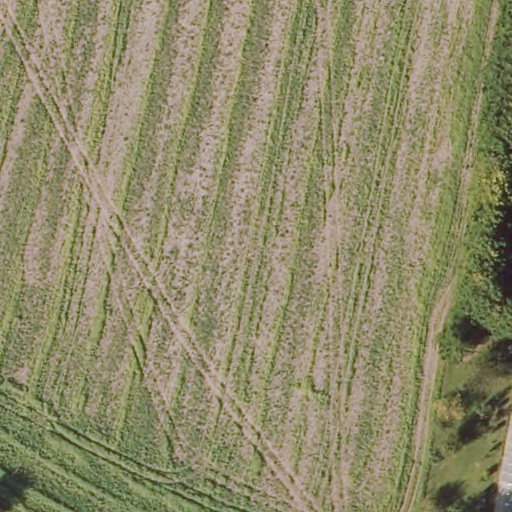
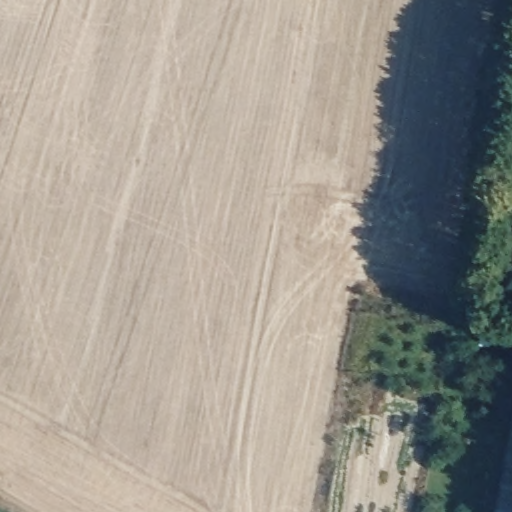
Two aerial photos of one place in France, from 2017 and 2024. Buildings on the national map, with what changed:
unchanged [(512,512),(493,512),(512,414),(512,512)]

